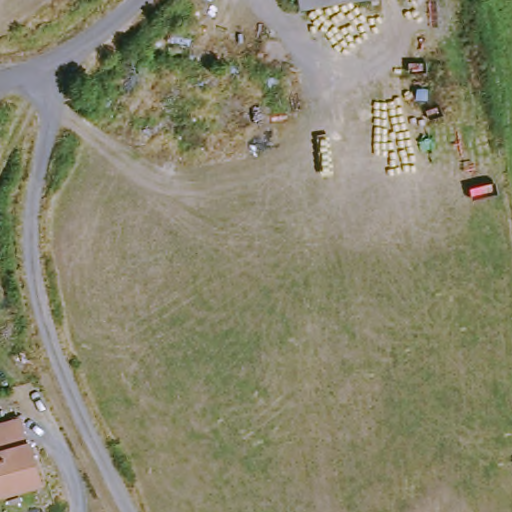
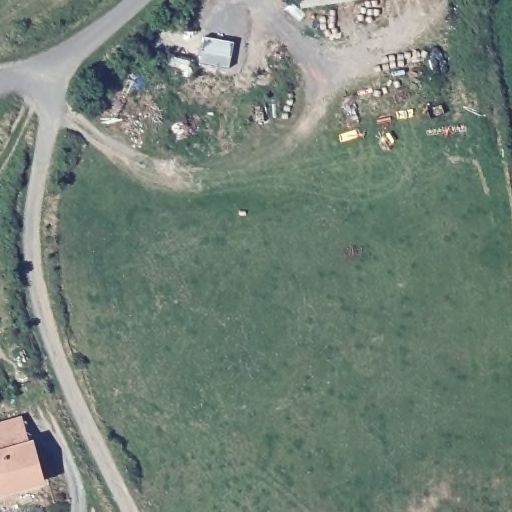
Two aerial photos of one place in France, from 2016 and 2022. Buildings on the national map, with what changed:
unchanged [(306,0),(350,0),(307,8),(306,0)]
unchanged [(34,446),(45,485),(0,497),(0,430),(26,423),(31,447),(34,446)]

